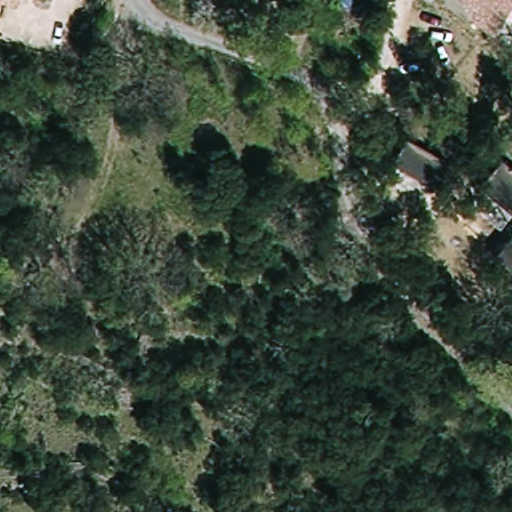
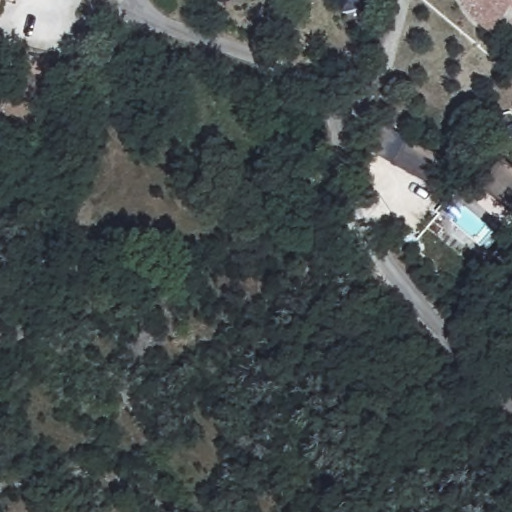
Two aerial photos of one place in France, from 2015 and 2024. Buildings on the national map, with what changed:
unchanged [(16,1),(11,20),(0,17),(0,0),(31,0),(30,5),(16,1)]
unchanged [(492,36),(463,11),(460,0),(512,0),(512,31),(502,24),(492,36)]
unchanged [(448,163),(436,185),(393,163),(405,138),(448,163)]
unchanged [(512,169),(512,215),(480,186),(502,160),(512,169)]
unchanged [(491,258),(512,233),(512,272),(509,275),(491,258)]

